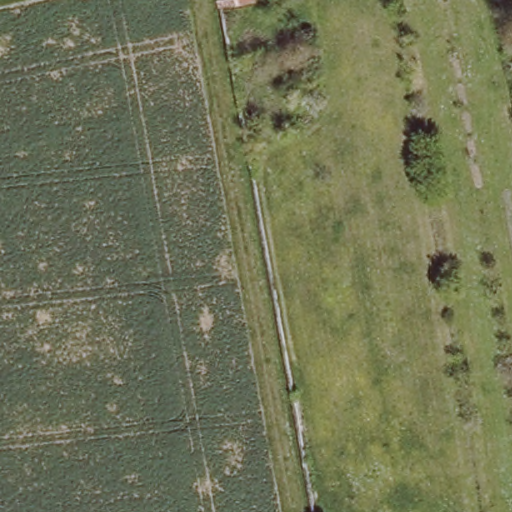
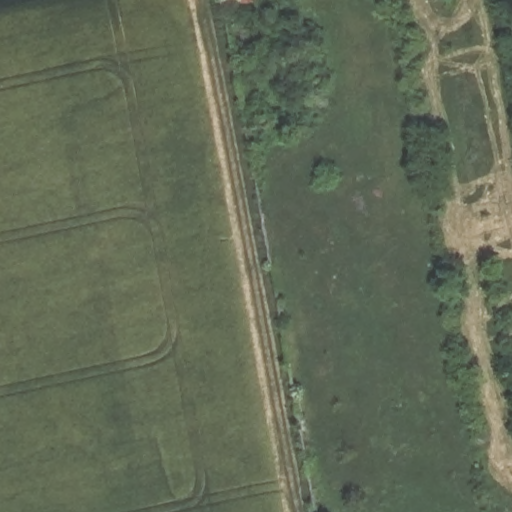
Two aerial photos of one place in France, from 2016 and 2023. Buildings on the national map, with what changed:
unchanged [(220,7),(218,0),(250,0),(220,7)]

